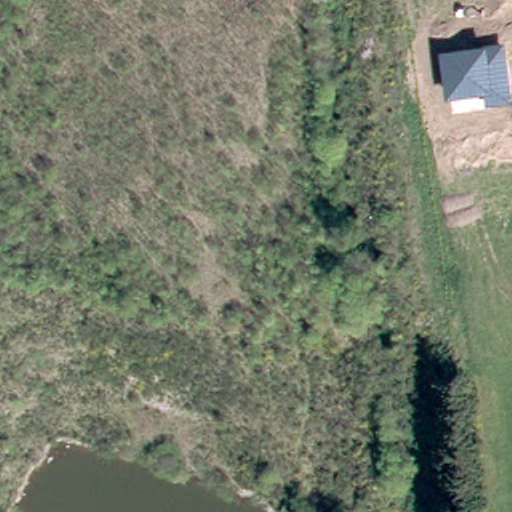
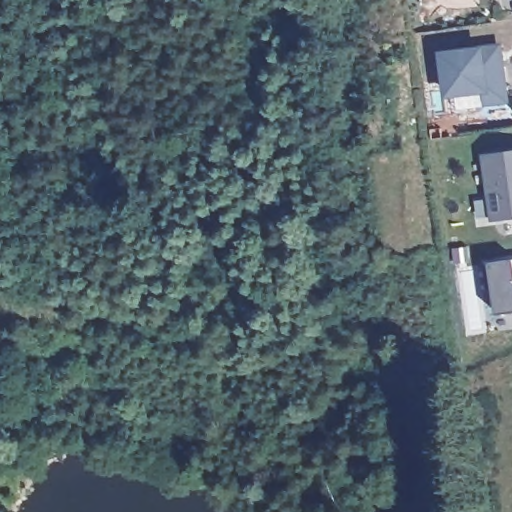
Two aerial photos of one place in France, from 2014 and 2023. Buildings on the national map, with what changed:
unchanged [(512,102),(487,105),(486,93),(447,98),(441,51),(488,45),(505,43),(512,102)]
new [(483,152),(512,148),(512,216),(493,219),(483,152)]
new [(497,287),(489,287),(485,262),(493,261),(512,258),(512,310),(501,312),(497,287)]

